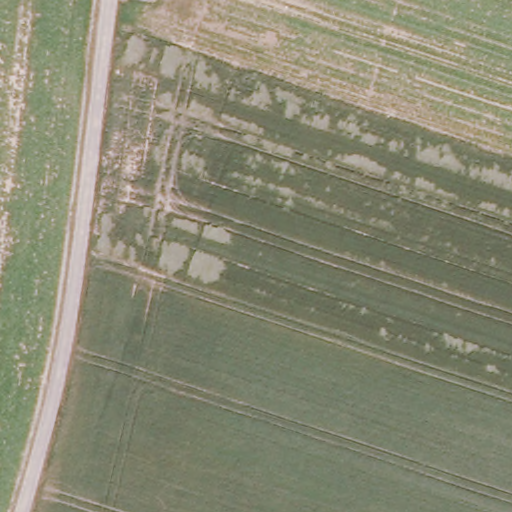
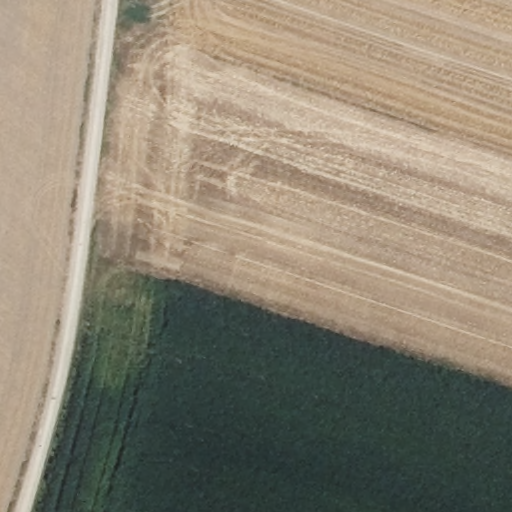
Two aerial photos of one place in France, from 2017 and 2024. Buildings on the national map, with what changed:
unchanged [(140,0),(152,0),(152,3),(140,0)]

